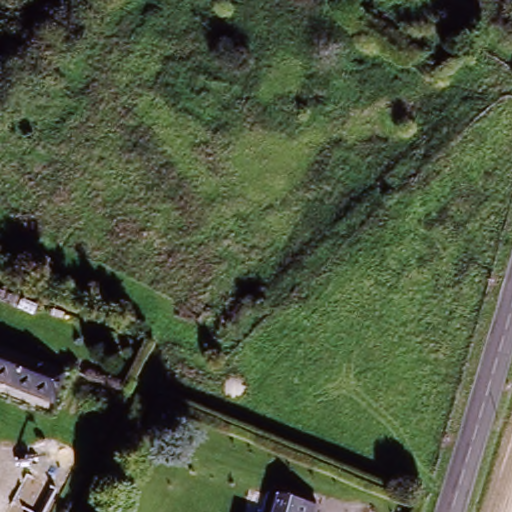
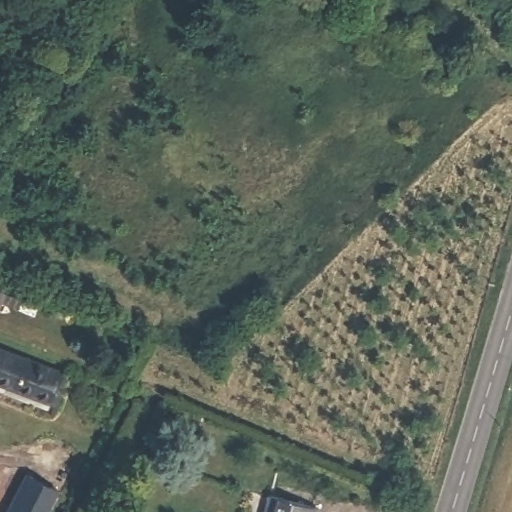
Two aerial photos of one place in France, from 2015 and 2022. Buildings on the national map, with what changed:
unchanged [(57,404),(0,380),(0,347),(68,375),(57,404)]
new [(58,497),(50,512),(12,512),(28,481),(58,497)]
unchanged [(276,485),(325,500),(322,512),(268,512),(276,485)]

